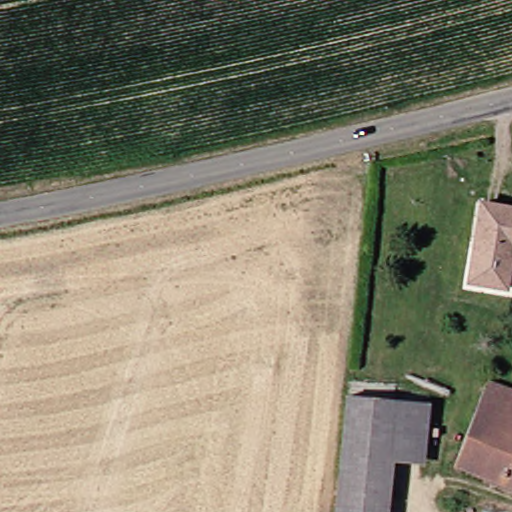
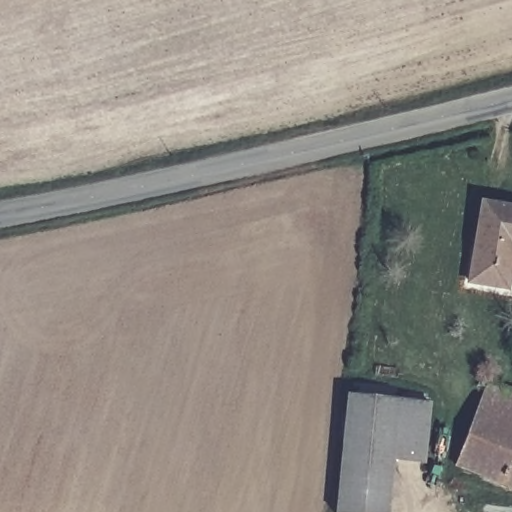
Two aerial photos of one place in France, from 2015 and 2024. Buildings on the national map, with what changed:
unchanged [(512,208),(512,246),(511,246),(507,286),(476,284),(478,261),(483,206),(512,208)]
unchanged [(493,374),(512,382),(512,483),(461,464),(493,374)]
unchanged [(427,402),(423,468),(391,467),(388,507),(388,512),(335,512),(343,397),(380,399),(427,402)]

